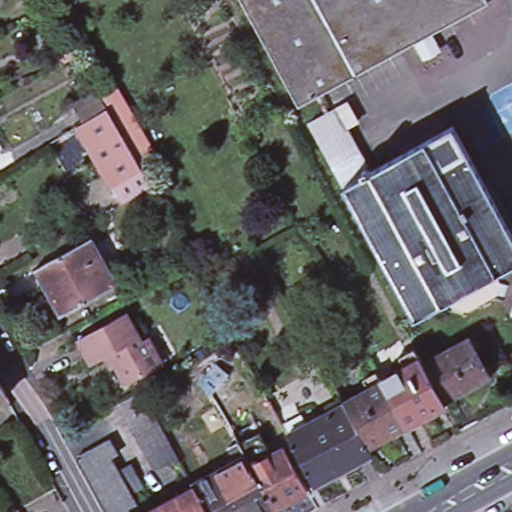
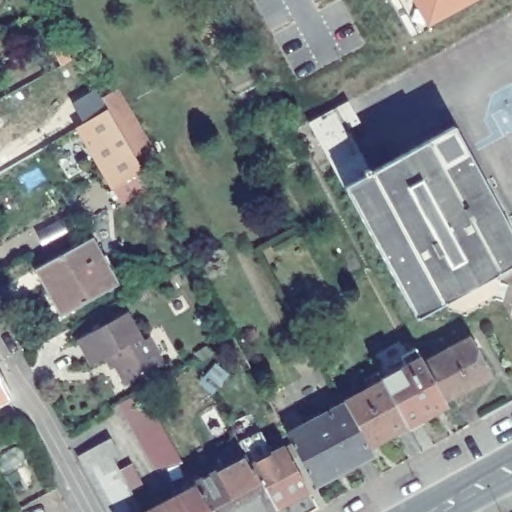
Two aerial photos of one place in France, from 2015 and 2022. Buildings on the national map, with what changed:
demolished [(295,107),(236,0),(311,0),(352,76),(295,107)]
demolished [(440,28),(430,34),(436,46),(417,57),(411,44),(352,76),(311,0),(425,0),(440,28)]
demolished [(440,28),(425,0),(463,0),(470,12),(440,28)]
demolished [(463,0),(486,0),(487,3),(470,12),(463,0)]
unchanged [(70,136),(80,129),(86,126),(75,107),(100,92),(111,111),(112,111),(147,173),(146,173),(115,191),(105,197),(70,136)]
unchanged [(315,139),(305,120),(341,99),(352,119),(340,126),(364,169),(339,183),(315,139)]
unchanged [(448,123),(512,240),(512,259),(410,315),(339,183),(364,169),(448,123)]
unchanged [(87,241),(113,288),(60,318),(34,271),(87,241)]
unchanged [(118,316),(127,332),(134,328),(154,365),(117,386),(100,355),(82,365),(70,343),(118,316)]
unchanged [(424,365),(470,339),(479,355),(477,356),(484,368),(488,371),(491,375),(490,380),(486,384),(482,385),(480,384),(445,403),(424,365)]
unchanged [(422,421),(425,424),(410,432),(383,383),(381,380),(420,358),(424,365),(445,403),(447,407),(422,421)]
unchanged [(275,400),(327,372),(333,384),(275,416),(268,404),(265,399),(272,395),(275,400)]
unchanged [(0,385),(0,379),(2,383),(0,385)]
unchanged [(410,432),(397,439),(395,435),(369,449),(345,406),(344,404),(383,383),(410,432)]
unchanged [(140,455),(134,443),(127,430),(120,417),(143,405),(150,417),(157,430),(163,442),(170,455),(147,467),(140,455)]
unchanged [(369,449),(373,458),(315,489),(287,437),(345,406),(369,449)]
unchanged [(98,491),(90,478),(82,463),(90,459),(87,453),(106,442),(114,456),(112,456),(116,464),(123,477),(131,490),(138,504),(143,512),(109,512),(105,504),(98,491)]
unchanged [(250,468),(285,450),(308,493),(275,511),(250,468)]
unchanged [(208,512),(195,488),(194,486),(245,459),(250,468),(275,511),(273,512),(208,512)]
unchanged [(208,512),(153,512),(195,488),(208,512)]

